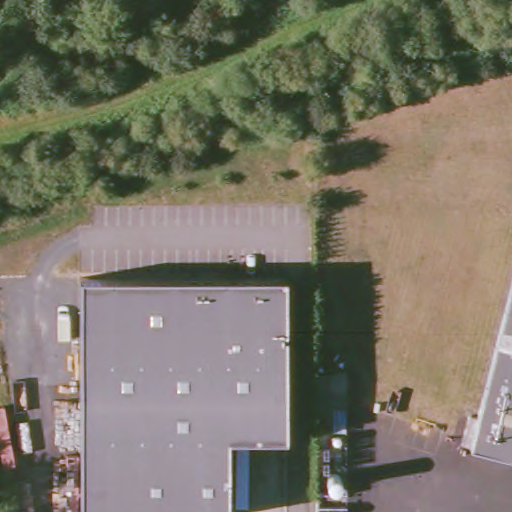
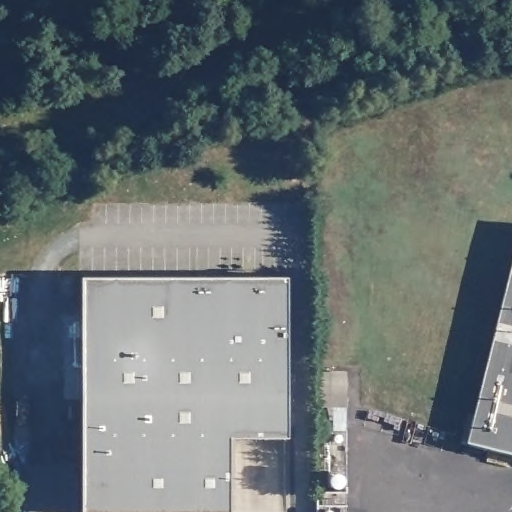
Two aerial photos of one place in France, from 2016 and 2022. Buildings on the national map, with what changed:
unchanged [(281,280),(280,442),(223,442),(222,512),(74,512),(75,278),(281,280)]
unchanged [(474,443),(475,441),(465,438),(473,409),(483,411),(512,297),(512,453),(474,443)]
unchanged [(317,373),(348,374),(348,382),(348,409),(317,408),(317,381),(317,373)]

